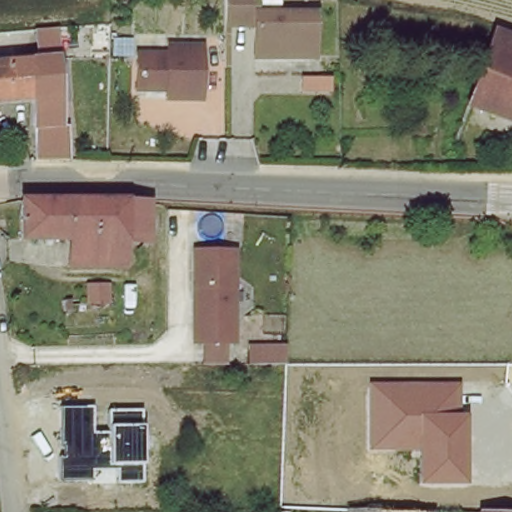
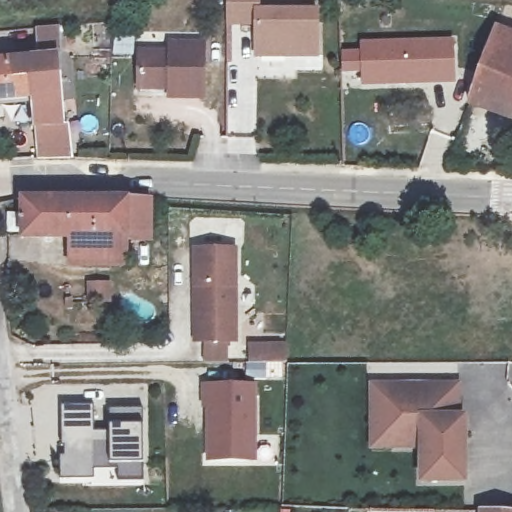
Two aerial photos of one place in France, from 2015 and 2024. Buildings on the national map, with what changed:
unchanged [(261,10),(317,10),(318,54),(260,54),(260,22),(231,22),(231,20),(230,0),(261,0),(261,10)]
new [(359,49),(359,40),(455,37),(456,84),(362,86),(361,72),(342,73),(341,50),(359,49)]
unchanged [(166,46),(166,38),(198,38),(198,94),(169,95),(168,87),(138,88),(138,45),(166,46)]
unchanged [(472,101),(490,43),(512,49),(512,112),(472,101)]
unchanged [(34,119),(30,99),(0,99),(0,60),(60,57),(62,118),(34,119)]
unchanged [(40,156),(40,143),(69,143),(69,153),(69,157),(40,156)]
unchanged [(63,229),(24,228),(25,189),(122,193),(144,194),(143,231),(121,231),(120,252),(88,251),(63,250),(63,229)]
unchanged [(194,340),(194,248),(233,248),(233,340),(194,340)]
unchanged [(247,346),(285,346),(284,362),(246,362),(247,346)]
unchanged [(461,414),(467,414),(469,485),(420,485),(419,450),(369,451),(368,382),(462,382),(461,414)]
new [(250,385),(250,459),(205,458),(206,405),(202,405),(201,385),(250,385)]
unchanged [(145,482),(118,483),(119,469),(95,469),(95,480),(61,481),(60,457),(65,457),(64,446),(61,446),(62,407),(96,406),(95,431),(109,431),(110,408),(144,409),(145,482)]

